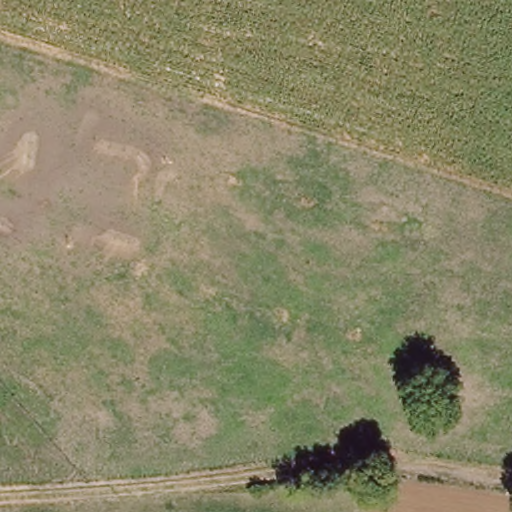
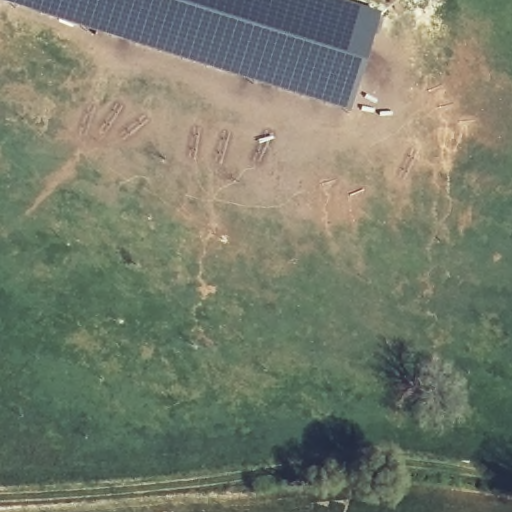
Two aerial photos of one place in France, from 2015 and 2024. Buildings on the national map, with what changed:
new [(350,111),(0,2),(0,0),(348,0),(382,10),(350,111)]

